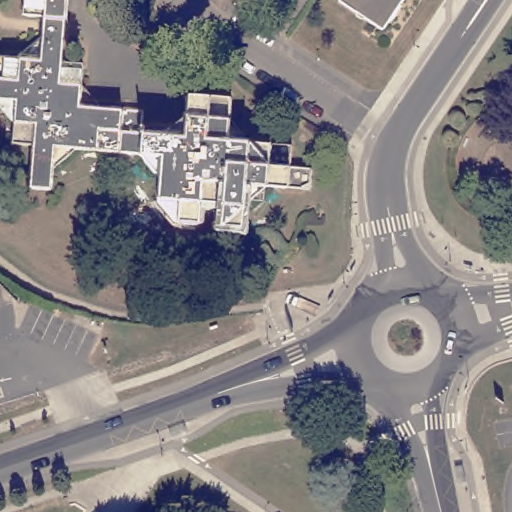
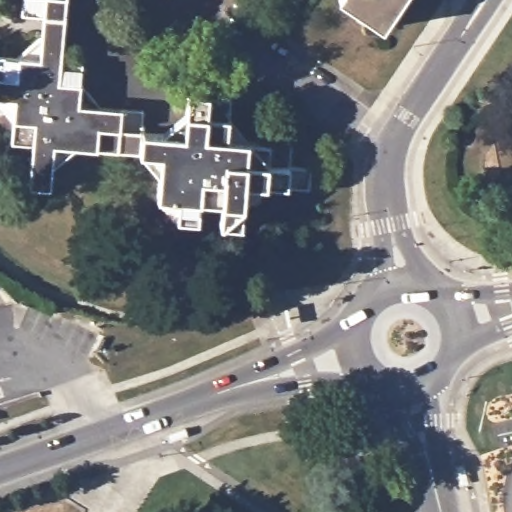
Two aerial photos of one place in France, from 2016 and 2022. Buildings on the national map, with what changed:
unchanged [(32,188),(36,144),(15,142),(17,123),(0,101),(0,81),(2,56),(21,57),(44,37),(46,16),(26,14),(27,0),(70,0),(65,61),(86,62),(85,81),(105,107),(147,111),(145,132),(167,134),(189,117),(192,93),(235,98),(230,139),(295,145),(293,166),(315,168),(314,187),(272,184),(248,205),(246,227),(223,224),(224,203),(205,201),(202,222),(183,221),(161,196),(163,177),(143,155),(77,148),(56,169),(54,189),(32,188)]
unchanged [(386,24),(350,0),(403,0),(386,24)]

